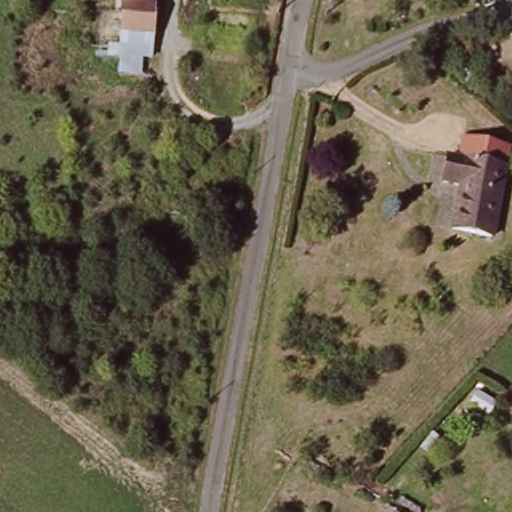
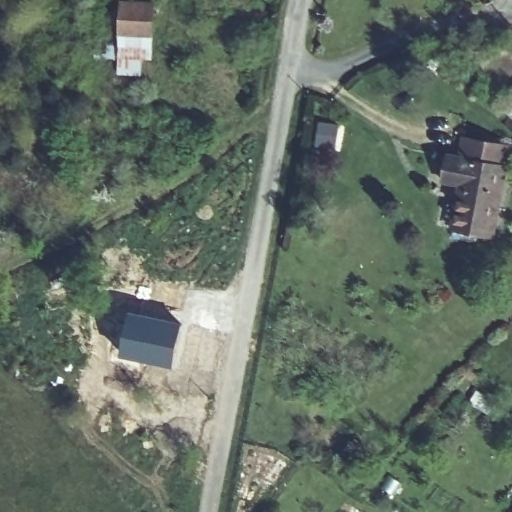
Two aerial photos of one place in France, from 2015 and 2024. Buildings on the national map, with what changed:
unchanged [(116,69),(116,53),(119,1),(121,1),(151,2),(150,29),(150,55),(140,54),(139,70),(116,69)]
unchanged [(512,161),(493,236),(450,225),(461,185),(443,180),(450,155),(460,157),(465,137),(512,150),(512,161)]
new [(129,310),(182,322),(172,367),(120,356),(129,310)]
unchanged [(487,393),(505,406),(496,417),(478,404),(487,393)]

